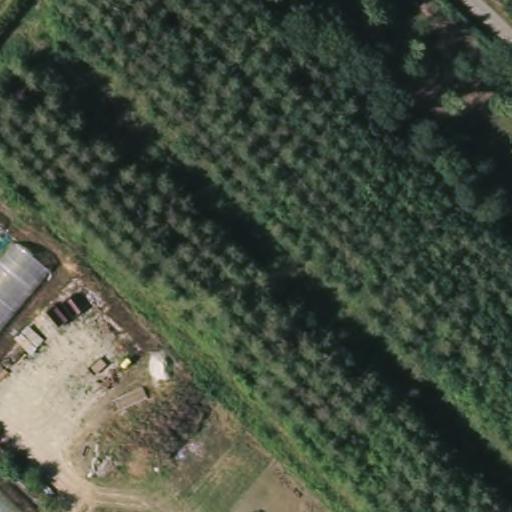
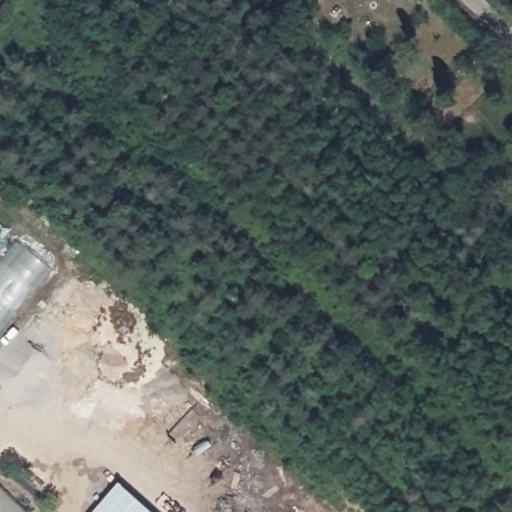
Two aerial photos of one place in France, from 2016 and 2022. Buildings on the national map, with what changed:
unchanged [(7,225),(0,234),(0,221),(7,225)]
new [(151,512),(93,512),(119,483),(151,512)]
unchanged [(8,512),(0,512),(0,504),(8,512)]

